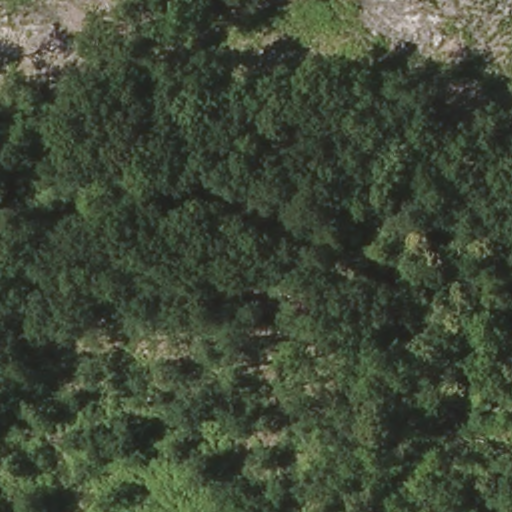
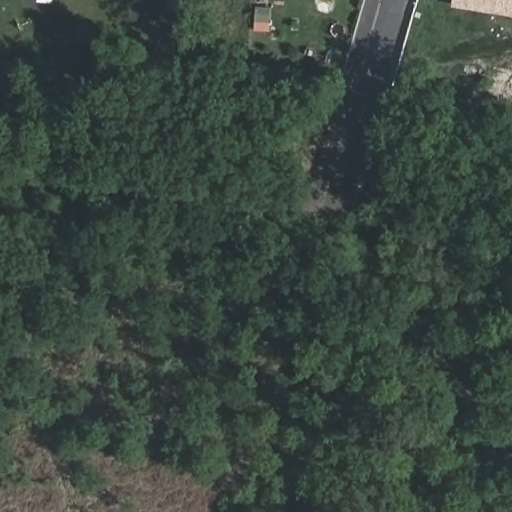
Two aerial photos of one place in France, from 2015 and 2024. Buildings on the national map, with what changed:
new [(512,16),(457,7),(458,0),(512,0),(512,16)]

